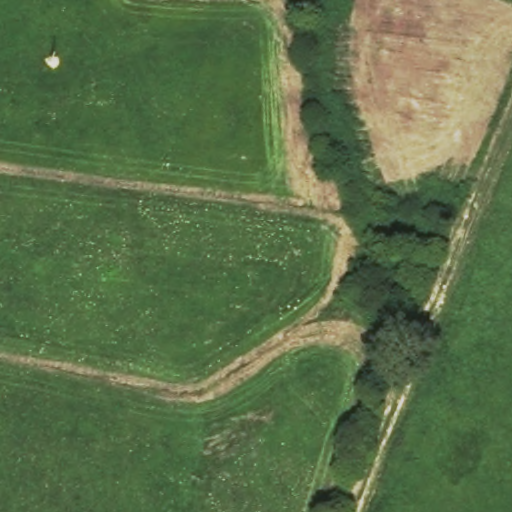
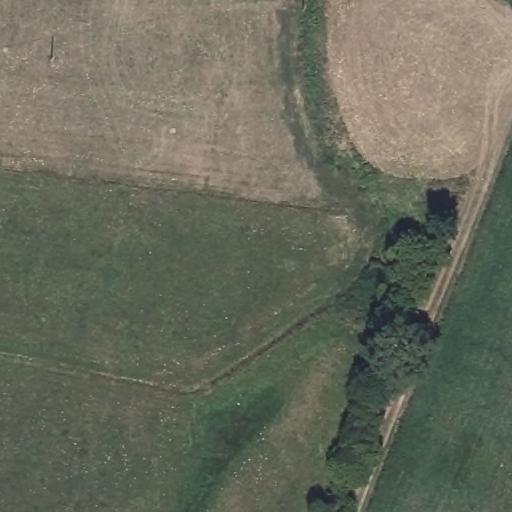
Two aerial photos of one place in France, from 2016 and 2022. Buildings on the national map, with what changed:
[]

